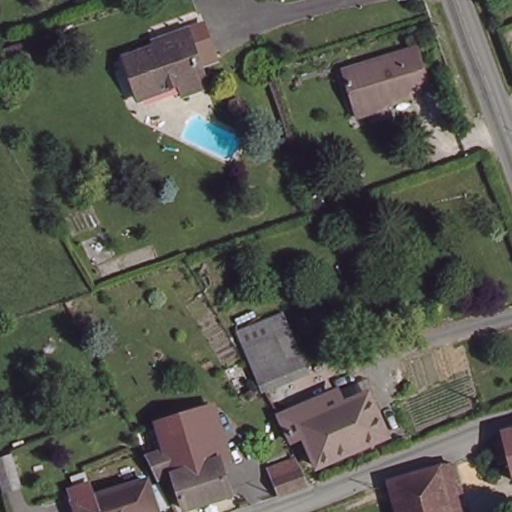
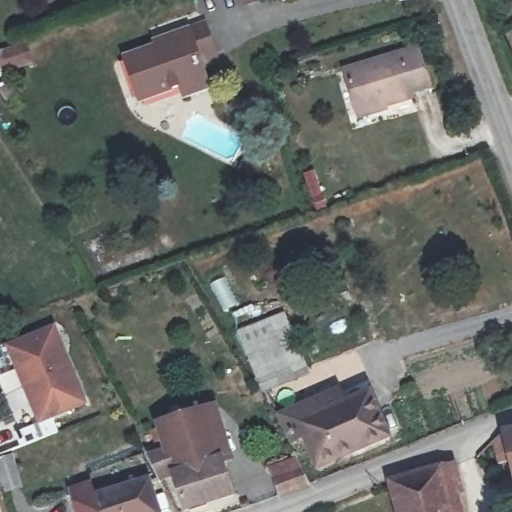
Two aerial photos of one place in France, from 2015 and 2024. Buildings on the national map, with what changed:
unchanged [(141,53),(169,44),(166,36),(205,23),(217,60),(200,65),(206,85),(183,93),(181,87),(155,95),(142,99),(128,58),(141,53)]
unchanged [(419,61),(432,99),(413,105),(415,110),(361,128),(346,85),(419,61)]
unchanged [(242,340),(266,327),(281,318),(309,366),(294,375),(271,389),(242,340)]
new [(37,425),(4,346),(54,325),(88,405),(37,425)]
unchanged [(339,395),(369,384),(371,392),(375,399),(393,444),(321,473),(308,442),(294,446),(288,428),(343,406),(339,395)]
unchanged [(206,407),(220,403),(222,410),(208,414),(206,407)]
unchanged [(189,512),(177,477),(169,479),(163,454),(176,450),(170,428),(208,414),(213,429),(236,498),(195,512),(189,512)]
unchanged [(502,441),(512,438),(512,474),(502,441)]
unchanged [(11,495),(0,498),(0,462),(1,462),(11,495)]
unchanged [(271,475),(294,466),(306,489),(281,498),(271,475)]
unchanged [(85,475),(93,498),(118,490),(127,512),(77,512),(66,482),(85,475)]
unchanged [(176,512),(127,512),(118,490),(164,475),(176,512)]
unchanged [(404,512),(399,495),(446,481),(455,512),(404,512)]

